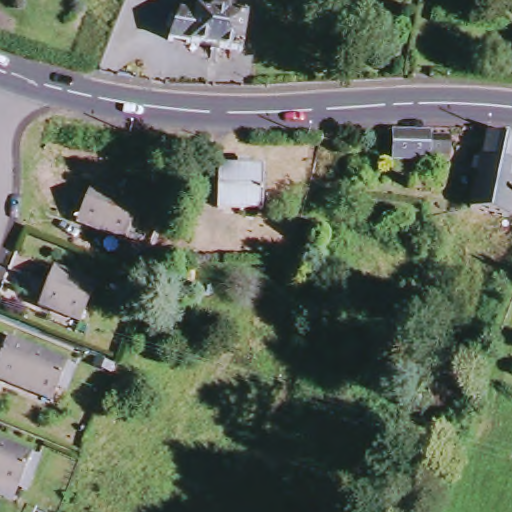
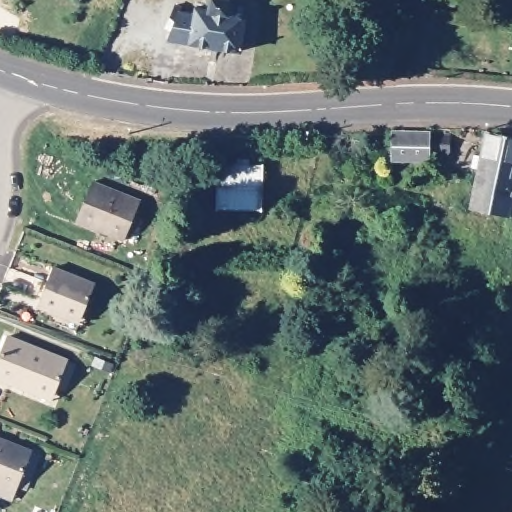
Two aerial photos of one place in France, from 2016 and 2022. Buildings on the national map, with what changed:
unchanged [(201,59),(201,44),(171,43),(171,40),(161,40),(161,31),(158,30),(169,4),(178,5),(176,15),(187,15),(191,8),(207,10),(208,0),(228,2),(228,13),(244,16),(243,33),(240,33),(239,49),(214,48),(214,59),(201,59)]
unchanged [(374,128),(404,127),(414,126),(444,135),(441,153),(404,146),(404,158),(376,157),(374,128)]
unchanged [(452,211),(459,172),(452,171),(453,155),(462,155),(467,133),(506,141),(501,173),(508,174),(512,153),(512,179),(504,217),(452,211)]
unchanged [(209,206),(210,164),(228,164),(228,157),(239,157),(239,164),(259,165),(258,207),(209,206)]
unchanged [(71,221),(88,179),(135,199),(119,240),(71,221)]
unchanged [(56,318),(29,306),(45,266),(88,284),(73,316),(71,323),(56,318)]
unchanged [(0,379),(0,351),(6,333),(66,358),(53,391),(49,399),(35,393),(0,379)]
unchanged [(0,439),(25,449),(13,484),(5,503),(0,501),(0,439)]

